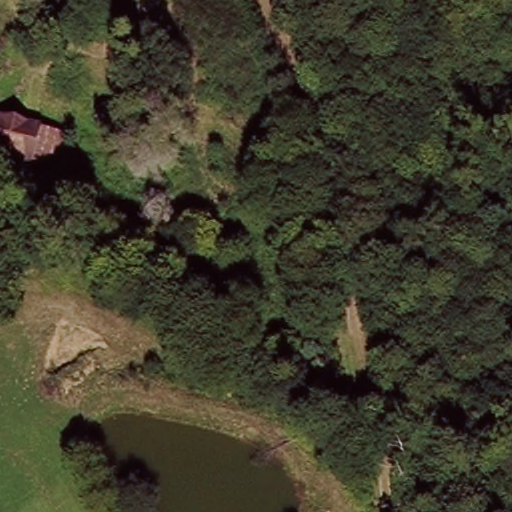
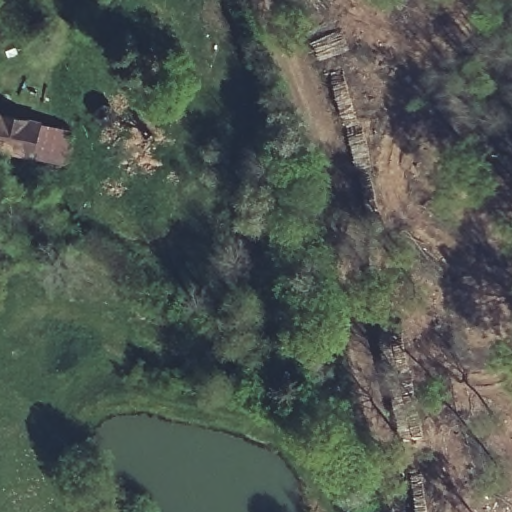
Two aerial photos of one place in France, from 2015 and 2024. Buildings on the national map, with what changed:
unchanged [(5,150),(0,168),(0,115),(67,133),(60,164),(5,150)]

